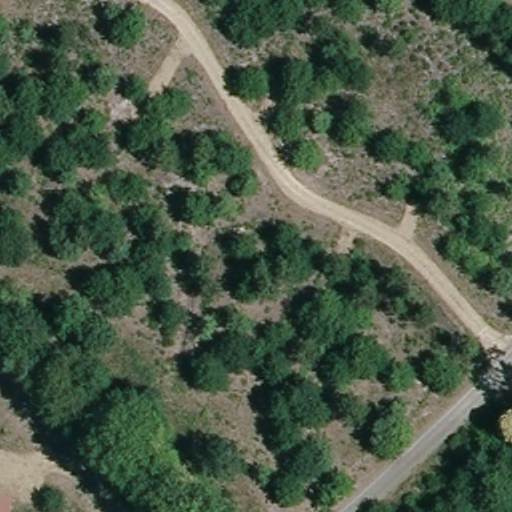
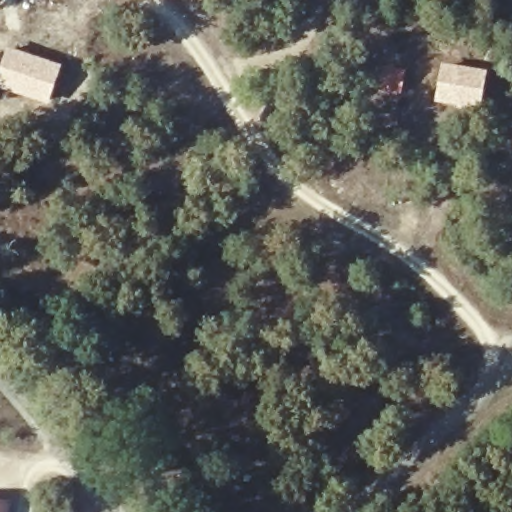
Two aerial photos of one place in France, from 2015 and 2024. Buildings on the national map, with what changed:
new [(7,46),(62,64),(47,103),(0,88),(0,67),(7,46)]
new [(441,61),(487,70),(479,111),(434,102),(441,61)]
new [(371,62),(406,69),(395,115),(362,107),(371,62)]
unchanged [(14,500),(12,512),(0,512),(0,497),(14,500)]

